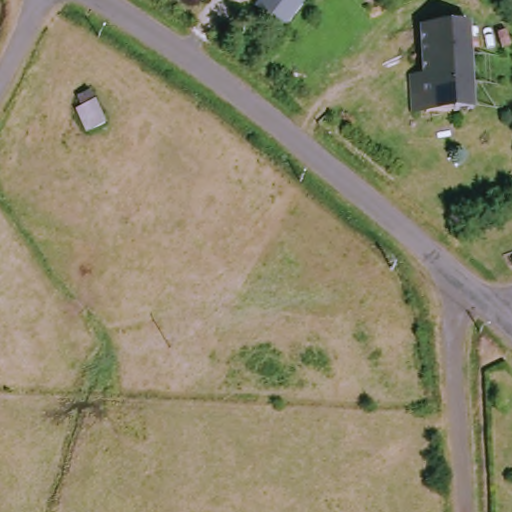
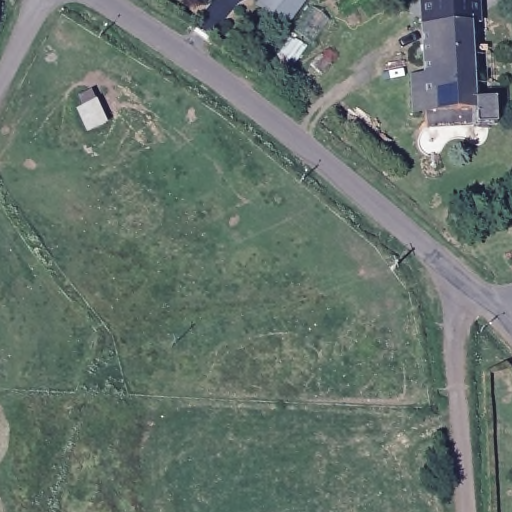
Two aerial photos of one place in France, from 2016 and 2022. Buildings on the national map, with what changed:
unchanged [(252,0),(297,0),(278,25),(250,3),(252,0)]
unchanged [(414,77),(426,76),(423,25),(469,21),(476,112),(459,112),(415,115),(414,77)]

